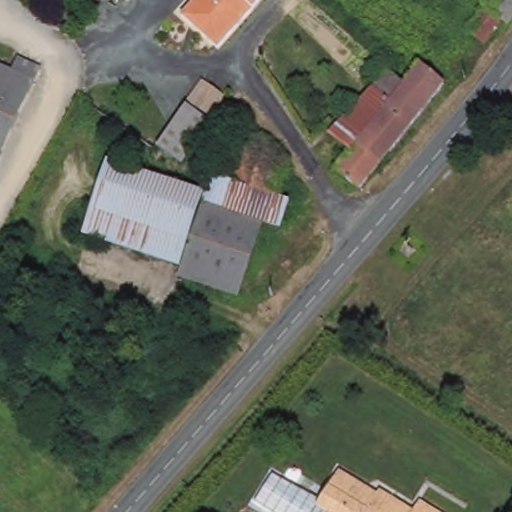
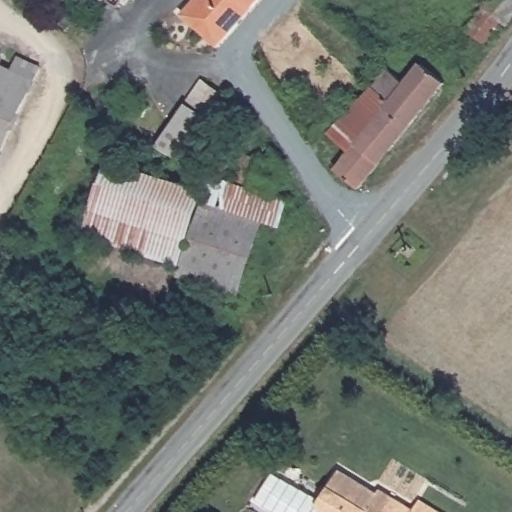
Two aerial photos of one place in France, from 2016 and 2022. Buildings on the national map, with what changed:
unchanged [(104,0),(105,0),(105,1),(104,0)]
unchanged [(127,0),(129,0),(129,1),(127,0)]
unchanged [(182,15),(196,0),(260,0),(218,47),(182,15)]
unchanged [(483,7),(489,0),(512,0),(512,19),(507,26),(502,22),(485,44),(466,29),(483,7)]
unchanged [(12,70),(16,63),(18,57),(39,66),(34,77),(0,158),(0,65),(12,70)]
unchanged [(359,189),(336,170),(351,151),(330,134),(372,88),(387,68),(405,84),(421,64),(445,83),(359,189)]
unchanged [(222,98),(212,125),(182,167),(156,149),(186,106),(198,81),(222,98)]
unchanged [(240,139),(273,151),(260,195),(222,182),(240,139)]
unchanged [(275,146),(295,168),(282,203),(260,195),(273,151),(275,146)]
unchanged [(109,162),(203,199),(176,265),(82,229),(109,162)]
unchanged [(222,182),(260,195),(282,203),(296,209),(283,237),(267,230),(234,301),(177,277),(219,180),(222,182)]
unchanged [(256,503),(273,473),(317,500),(313,506),(322,512),(270,512),(256,503)]
unchanged [(313,506),(335,473),(370,495),(375,489),(411,512),(322,512),(313,506)]
unchanged [(418,500),(439,512),(412,512),(418,500)]

